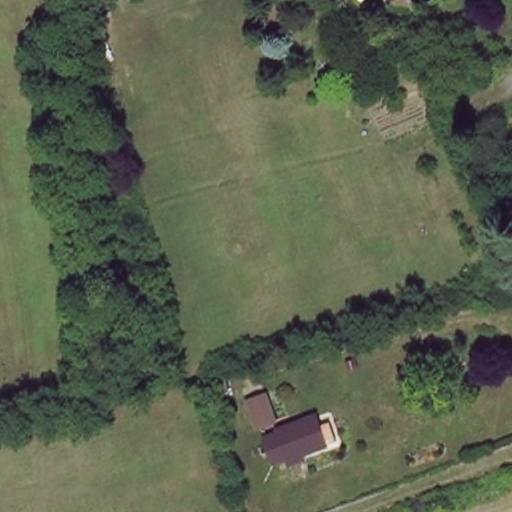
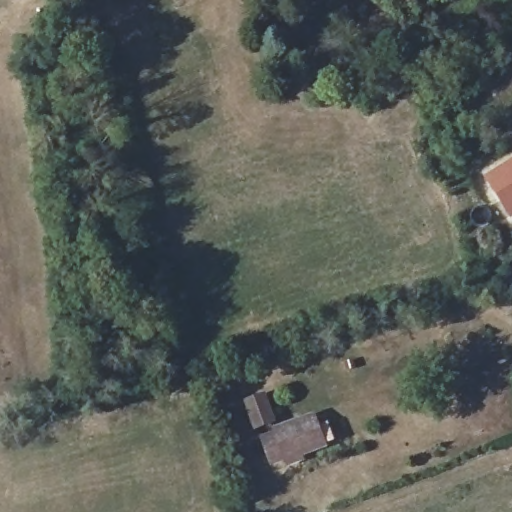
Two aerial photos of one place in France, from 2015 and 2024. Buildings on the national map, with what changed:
unchanged [(389,0),(415,0),(419,5),(400,16),(389,0)]
new [(512,159),(512,217),(509,219),(483,176),(512,159)]
unchanged [(277,458),(270,434),(321,419),(329,442),(306,449),(309,456),(295,461),(292,453),(277,458)]

